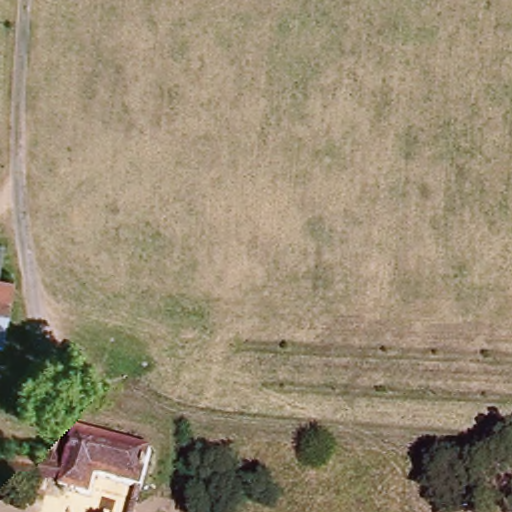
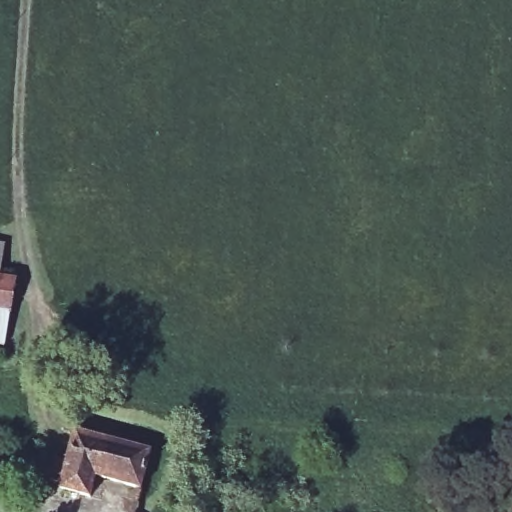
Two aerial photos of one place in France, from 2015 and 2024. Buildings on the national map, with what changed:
unchanged [(4,249),(0,274),(0,248),(4,249)]
unchanged [(15,283),(5,348),(0,347),(0,281),(15,283)]
unchanged [(137,492),(103,484),(97,502),(67,495),(66,500),(0,487),(0,452),(72,462),(79,434),(154,452),(143,512),(133,512),(137,492)]

